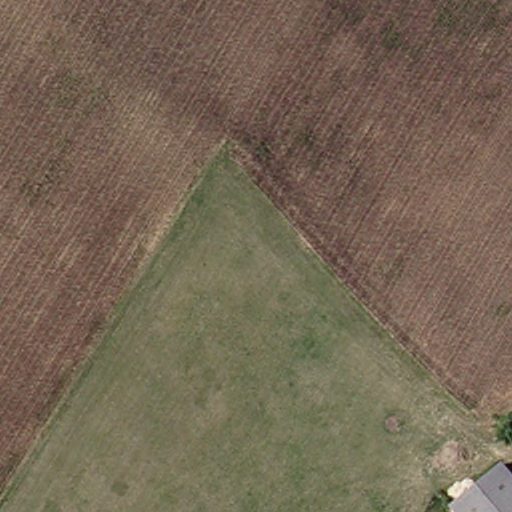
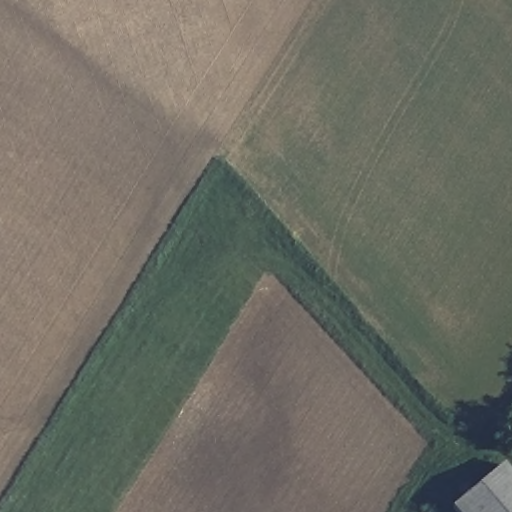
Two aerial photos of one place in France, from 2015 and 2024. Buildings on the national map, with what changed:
unchanged [(497,472),(512,490),(512,512),(450,512),(497,472)]

